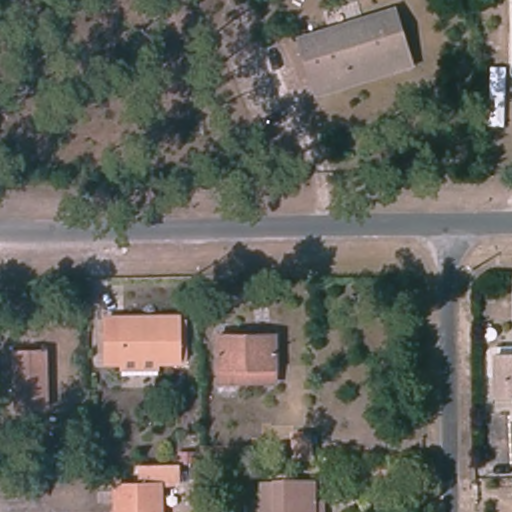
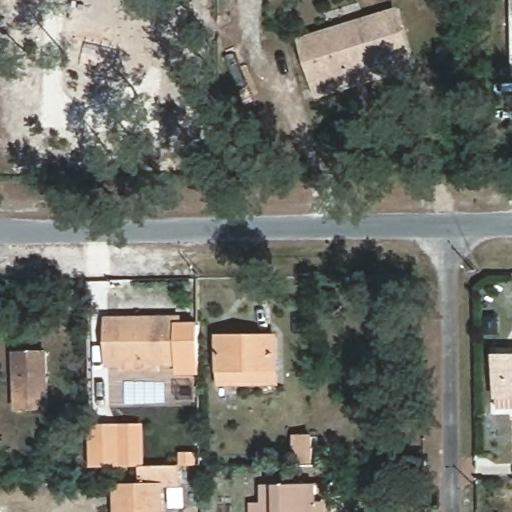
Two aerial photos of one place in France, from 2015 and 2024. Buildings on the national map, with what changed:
unchanged [(511,68),(510,0),(512,0),(512,68),(511,68)]
unchanged [(295,40),(397,7),(417,68),(315,101),(295,40)]
unchanged [(123,371),(123,366),(108,366),(107,321),(180,320),(181,364),(156,365),(156,371),(123,371)]
unchanged [(277,368),(236,369),(236,383),(218,383),(217,334),(277,334),(277,368)]
unchanged [(41,352),(42,407),(10,408),(9,352),(41,352)]
unchanged [(498,393),(497,353),(512,353),(512,393),(498,393)]
new [(139,465),(91,467),(91,425),(146,424),(146,465),(139,465)]
unchanged [(302,440),(318,440),(319,468),(301,468),(302,440)]
unchanged [(125,486),(140,486),(139,465),(180,465),(179,485),(158,485),(158,512),(112,512),(112,487),(125,486)]
unchanged [(253,502),(253,481),(304,481),(304,502),(315,502),(315,512),(241,512),(242,502),(253,502)]

